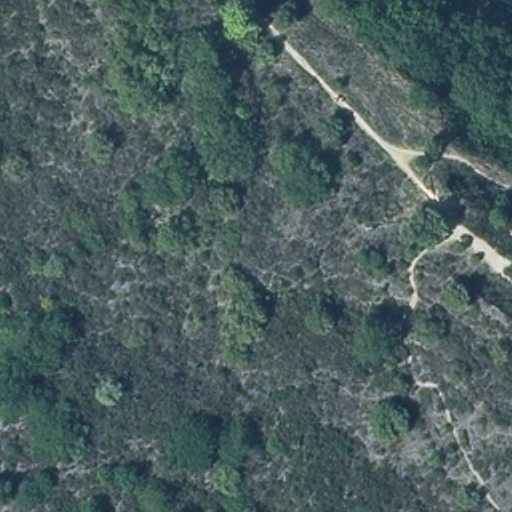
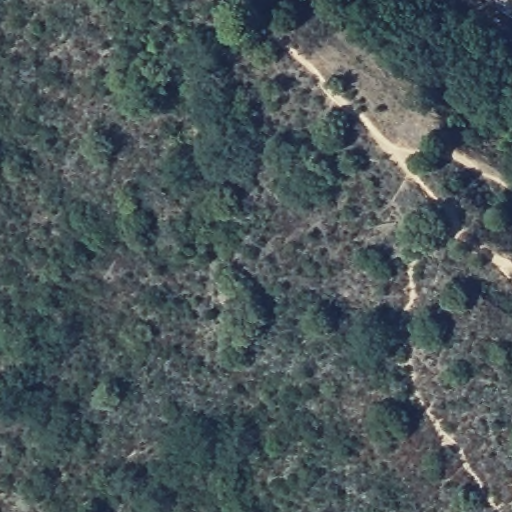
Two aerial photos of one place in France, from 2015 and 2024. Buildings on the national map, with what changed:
unchanged [(512,0),(512,17),(485,0),(512,0)]

